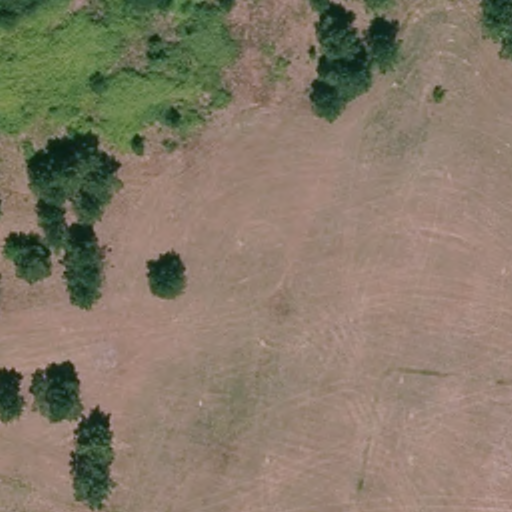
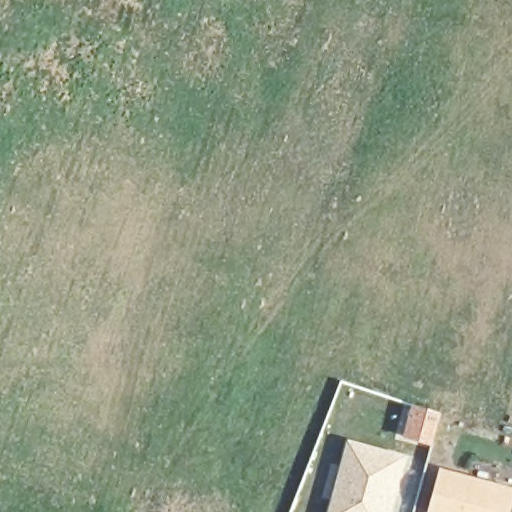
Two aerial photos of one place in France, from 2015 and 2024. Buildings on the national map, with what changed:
new [(348,441),(407,457),(392,512),(329,512),(348,441)]
new [(440,469),(512,487),(512,504),(510,512),(428,512),(440,469)]

